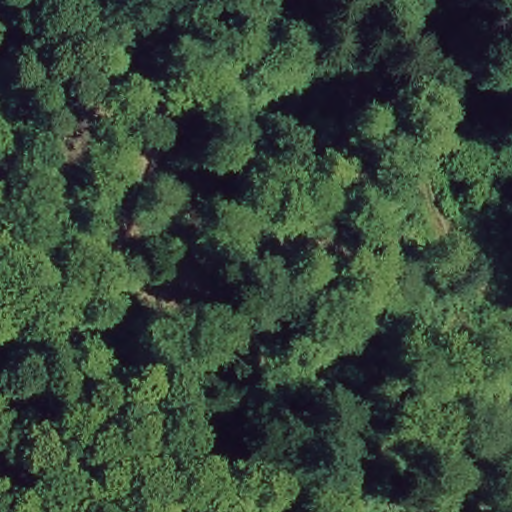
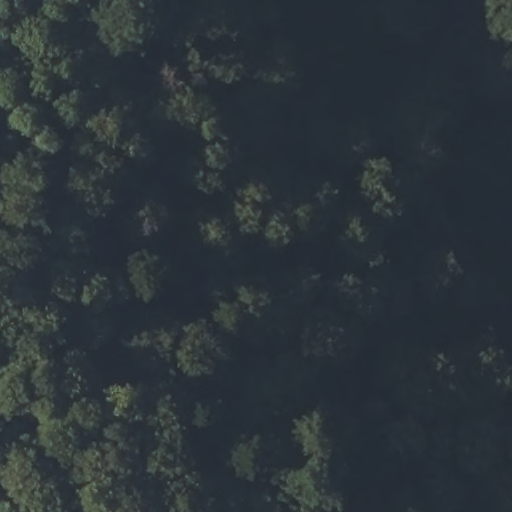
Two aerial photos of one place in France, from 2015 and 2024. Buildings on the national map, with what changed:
[]

